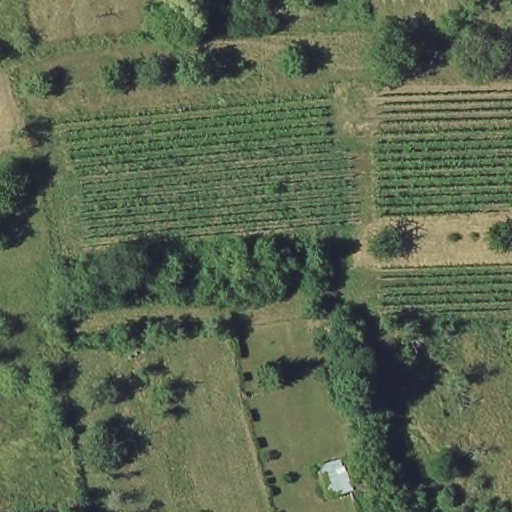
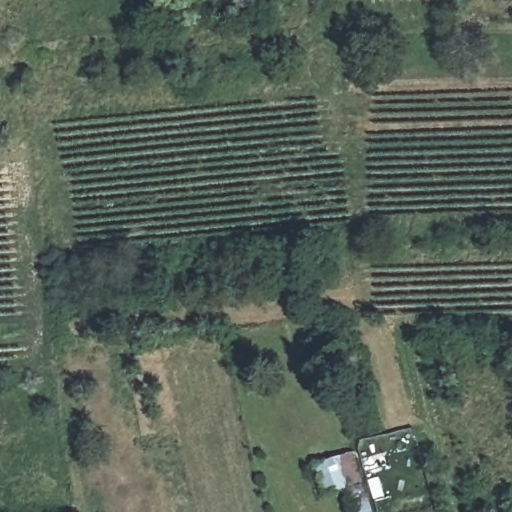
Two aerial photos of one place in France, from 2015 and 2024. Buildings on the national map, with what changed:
unchanged [(366,512),(351,512),(343,494),(325,498),(311,466),(347,456),(366,512)]

